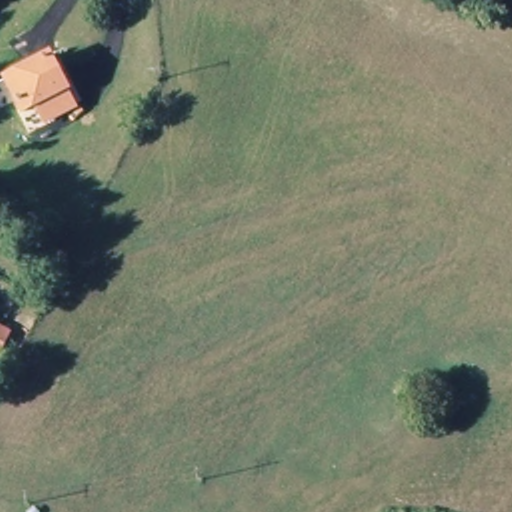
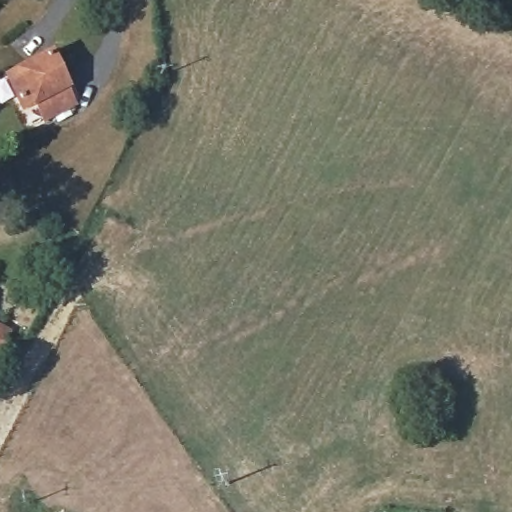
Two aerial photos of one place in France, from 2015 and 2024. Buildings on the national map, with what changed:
unchanged [(50,56),(78,105),(48,122),(39,107),(22,115),(5,82),(50,56)]
unchanged [(2,354),(0,353),(0,329),(12,335),(2,354)]

